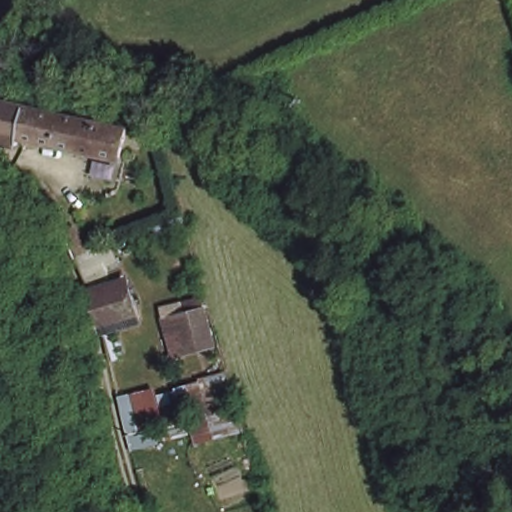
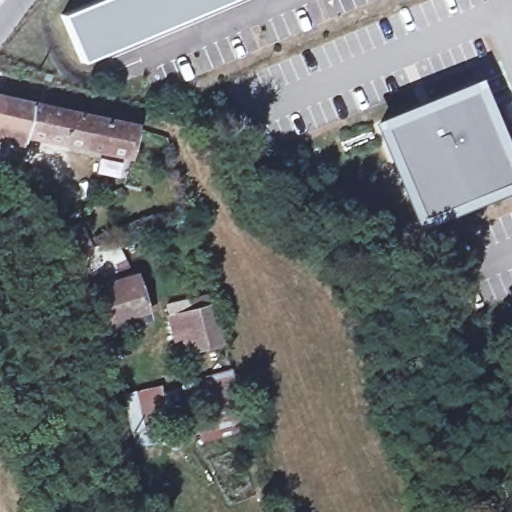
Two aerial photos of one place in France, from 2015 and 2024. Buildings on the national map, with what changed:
new [(235,0),(83,65),(64,15),(99,0),(235,0)]
new [(477,86),(512,173),(512,181),(421,218),(383,124),(477,86)]
unchanged [(126,153),(36,137),(35,144),(0,139),(0,97),(137,126),(126,153)]
unchanged [(92,251),(79,256),(65,232),(82,225),(92,251)]
unchanged [(149,326),(109,336),(82,260),(117,244),(149,326)]
unchanged [(219,341),(180,352),(171,316),(210,307),(219,341)]
new [(161,428),(166,438),(139,448),(119,398),(159,383),(163,393),(231,367),(236,380),(232,381),(237,397),(234,398),(245,426),(200,440),(192,422),(161,428)]

